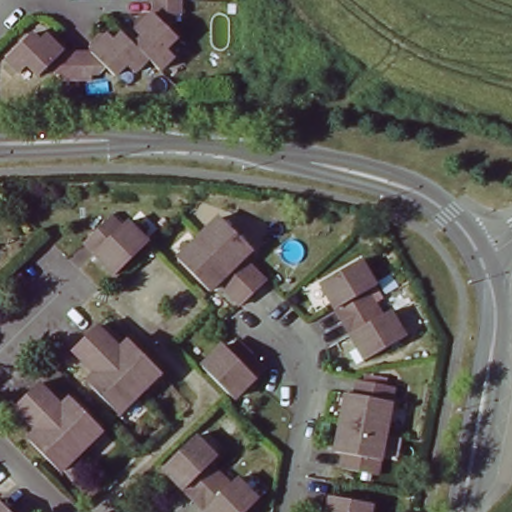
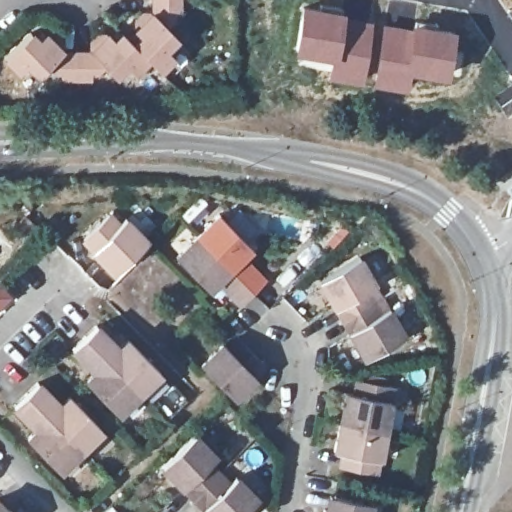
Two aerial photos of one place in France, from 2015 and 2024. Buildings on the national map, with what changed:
unchanged [(186,4),(157,4),(157,0),(186,0),(186,4)]
unchanged [(145,40),(140,35),(139,28),(149,16),(158,17),(157,4),(186,4),(185,19),(179,20),(178,24),(171,30),(182,41),(171,52),(178,60),(163,75),(152,64),(137,48),(145,40)]
new [(301,5),(345,11),(344,15),(373,20),(362,85),(327,80),(329,60),(293,54),(301,5)]
new [(382,22),(412,27),(413,20),(456,29),(446,78),(410,74),(406,91),(372,86),(382,22)]
unchanged [(67,78),(60,77),(54,70),(43,80),(32,69),(24,77),(10,63),(35,37),(43,45),(50,38),(58,39),(67,48),(67,56),(82,56),(82,84),(67,84),(67,78)]
unchanged [(95,47),(105,37),(113,38),(119,45),(127,37),(137,48),(152,64),(138,77),(130,69),(119,80),(109,70),(103,77),(97,78),(97,84),(82,84),(82,56),(95,56),(95,47)]
unchanged [(109,216),(120,226),(126,220),(147,241),(116,272),(83,241),(109,216)]
unchanged [(219,216),(252,248),(243,257),(266,280),(253,292),(234,272),(229,268),(228,267),(198,236),(219,216)]
unchanged [(198,236),(228,267),(229,268),(234,272),(253,292),(240,304),(218,281),(209,290),(177,256),(198,236)]
unchanged [(361,258),(375,285),(366,290),(374,302),(342,320),(320,281),(361,258)]
unchanged [(374,302),(381,315),(389,310),(404,336),(364,359),(342,320),(374,302)]
unchanged [(97,320),(119,342),(128,334),(160,366),(139,387),(85,331),(97,320)]
unchanged [(95,366),(72,343),(85,331),(139,387),(117,408),(85,375),(95,366)]
unchanged [(223,343),(229,350),(240,340),(264,365),(265,366),(232,397),(201,364),(223,343)]
unchanged [(394,388),(385,430),(341,421),(339,421),(345,392),(353,393),(356,381),(394,388)]
unchanged [(42,382),(65,405),(74,395),(107,428),(85,450),(30,393),(42,382)]
unchanged [(30,393),(85,450),(64,470),(32,437),(41,428),(18,405),(30,393)]
unchanged [(341,421),(385,430),(376,471),(339,463),(342,451),(334,450),(339,421),(341,421)]
unchanged [(195,435),(216,456),(209,463),(219,473),(193,499),(162,467),(195,435)]
unchanged [(236,478),(257,498),(243,512),(205,512),(193,499),(219,473),(230,484),(236,478)]
unchanged [(372,503),(370,512),(323,512),(323,510),(333,511),(336,496),(372,503)]
unchanged [(10,510),(8,512),(0,512),(0,501),(10,510)]
unchanged [(11,512),(8,512),(10,510),(11,512)]

